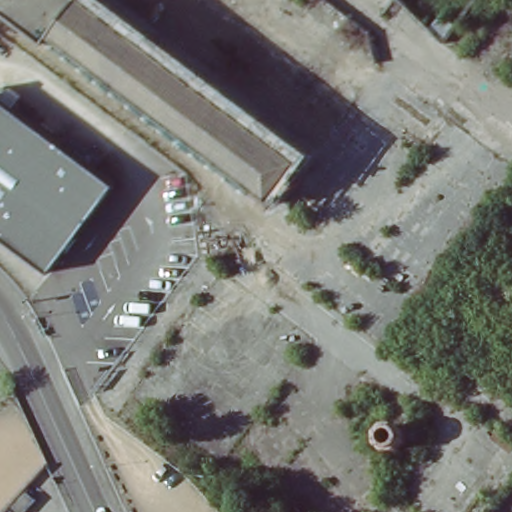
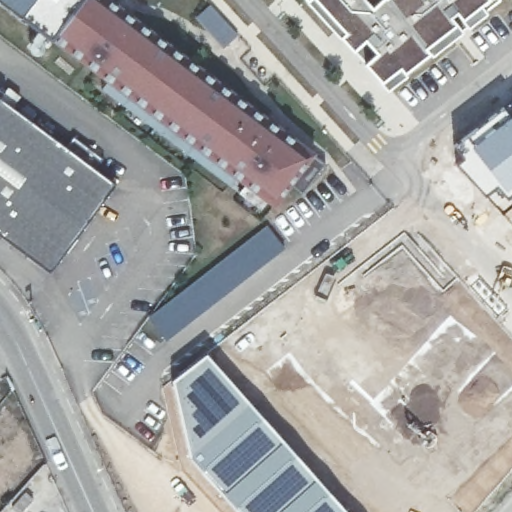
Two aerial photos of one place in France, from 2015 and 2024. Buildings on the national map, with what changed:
unchanged [(20,0),(77,0),(88,51),(20,0)]
unchanged [(77,0),(116,0),(309,147),(281,185),(272,197),(92,61),(90,60),(88,51),(77,0)]
new [(399,67),(380,80),(307,0),(496,0),(403,72),(399,67)]
new [(503,104),(512,97),(512,195),(509,197),(496,186),(498,183),(464,135),(503,104)]
unchanged [(50,271),(0,233),(0,100),(116,185),(50,271)]
new [(464,135),(498,183),(496,186),(485,195),(455,161),(462,156),(453,145),(464,135)]
unchanged [(268,225),(285,247),(164,341),(148,317),(268,225)]
new [(207,351),(350,512),(237,512),(189,458),(171,386),(169,380),(207,351)]

